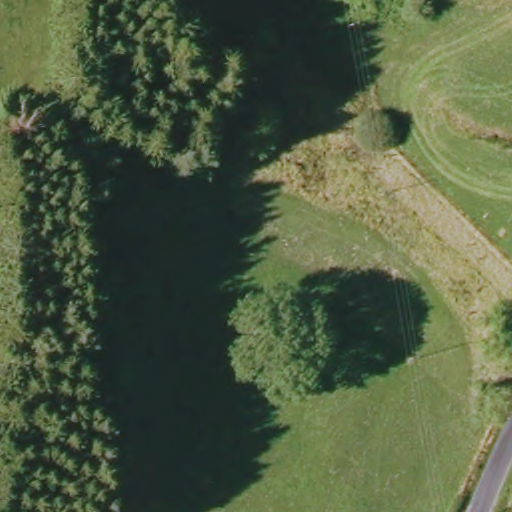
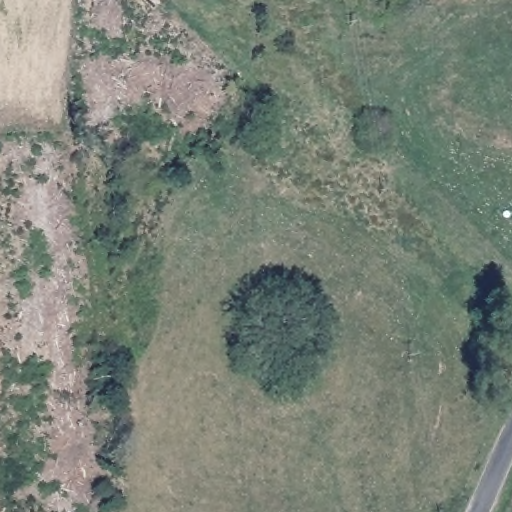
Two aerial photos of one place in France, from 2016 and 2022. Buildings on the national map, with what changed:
[]

